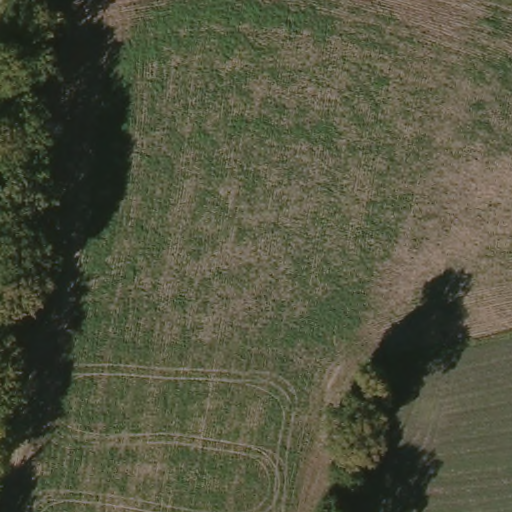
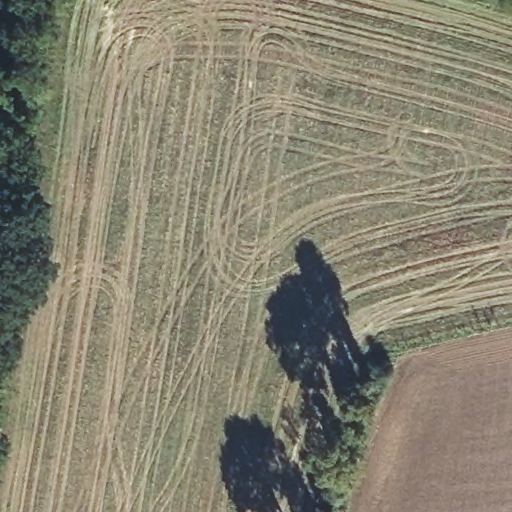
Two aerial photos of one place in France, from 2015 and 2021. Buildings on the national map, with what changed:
[]

